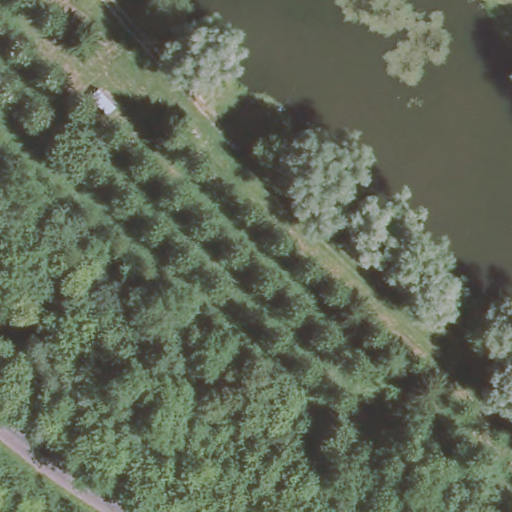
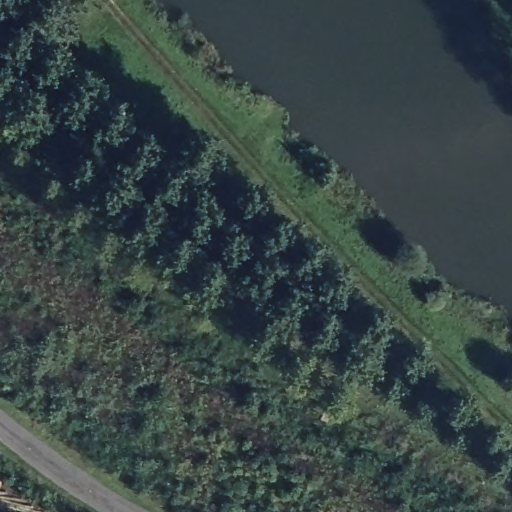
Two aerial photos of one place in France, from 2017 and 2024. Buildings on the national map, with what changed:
unchanged [(112,119),(91,99),(104,88),(121,106),(112,119)]

